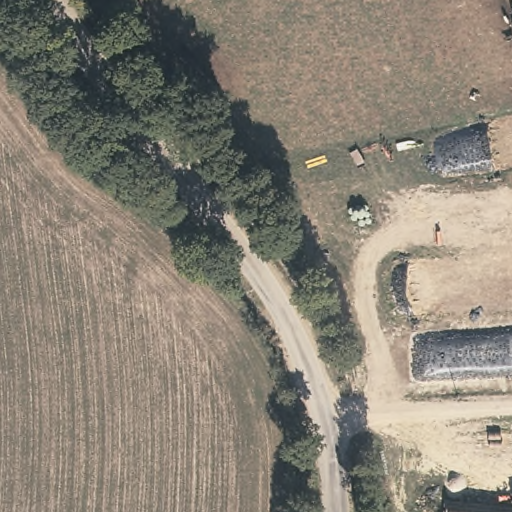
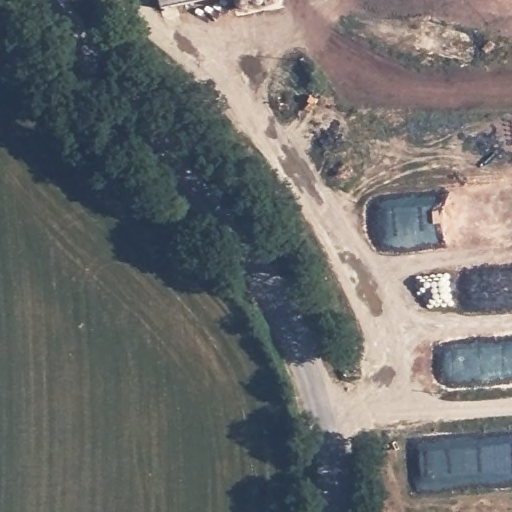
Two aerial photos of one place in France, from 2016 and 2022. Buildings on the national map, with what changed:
new [(159,0),(205,0),(161,9),(159,0)]

